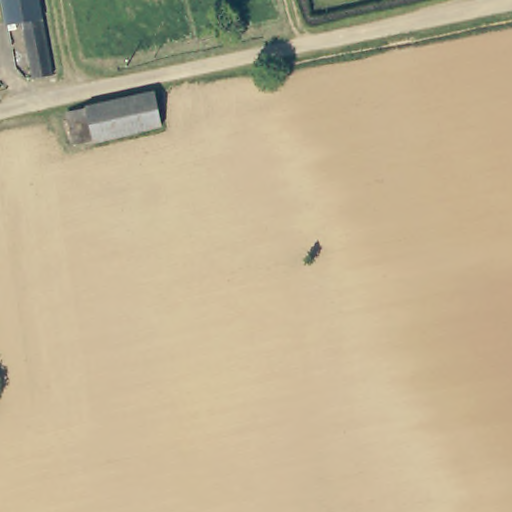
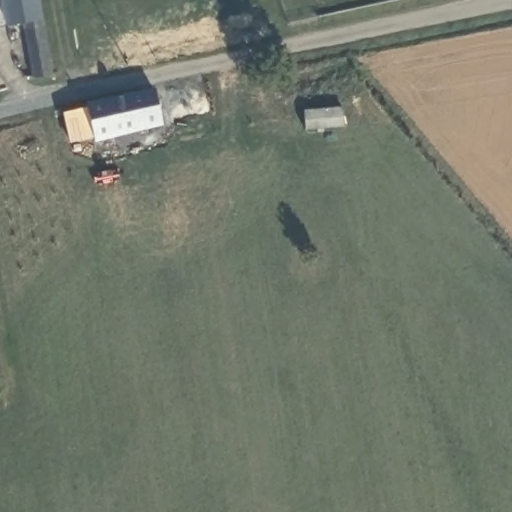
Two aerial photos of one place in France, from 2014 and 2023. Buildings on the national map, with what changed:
unchanged [(39,16),(21,21),(7,24),(3,0),(36,0),(39,16)]
unchanged [(49,74),(31,80),(21,21),(39,16),(49,74)]
unchanged [(75,112),(97,107),(97,104),(162,87),(169,120),(107,135),(102,134),(81,140),(75,112)]

